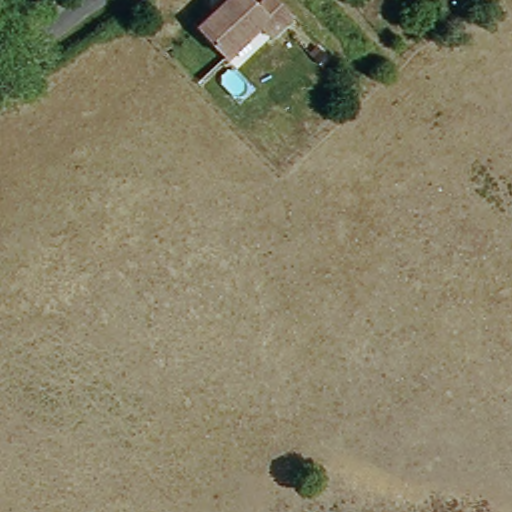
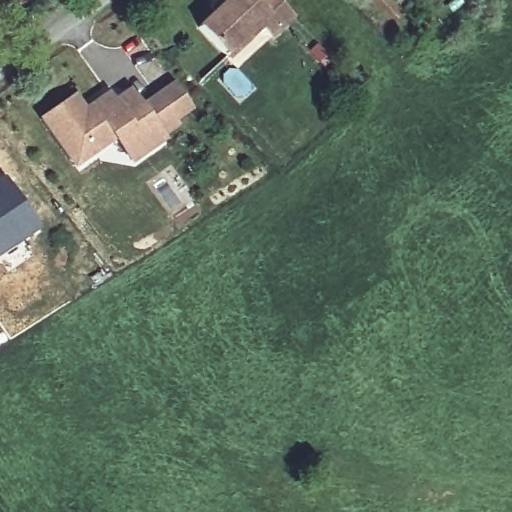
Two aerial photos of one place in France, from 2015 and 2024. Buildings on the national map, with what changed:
unchanged [(256,27),(244,38),(247,41),(223,62),(194,29),(227,0),(247,0),(255,9),(263,0),(271,0),(290,20),(268,40),(256,27)]
unchanged [(320,37),(343,61),(331,72),(308,48),(320,37)]
new [(36,117),(74,90),(85,105),(107,90),(113,96),(128,86),(139,101),(172,79),(192,109),(175,122),(178,127),(162,138),(165,141),(131,165),(113,140),(74,167),(36,117)]
new [(40,228),(0,256),(0,174),(2,173),(40,228)]

